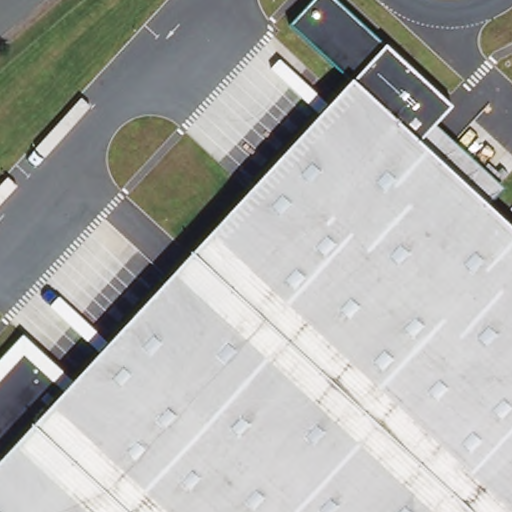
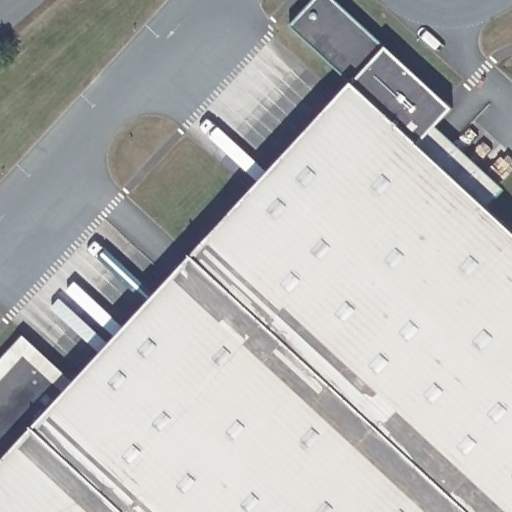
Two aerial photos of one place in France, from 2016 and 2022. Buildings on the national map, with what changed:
unchanged [(0,362),(24,337),(76,383),(353,83),(292,27),(316,0),(334,0),(387,47),(452,109),(419,146),(489,211),(512,232),(512,512),(0,512),(0,362)]

